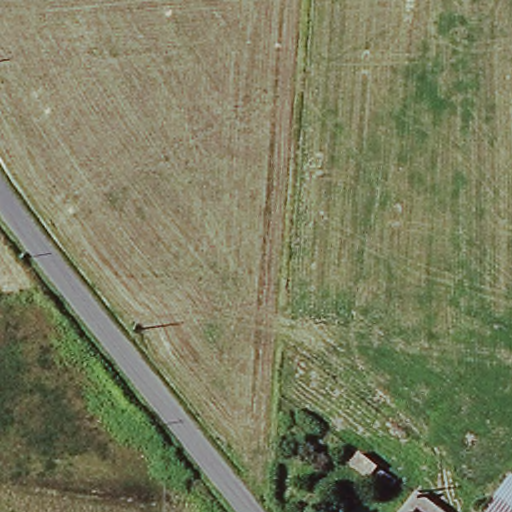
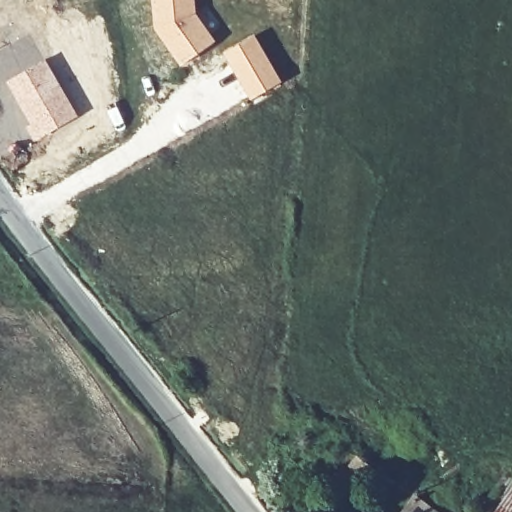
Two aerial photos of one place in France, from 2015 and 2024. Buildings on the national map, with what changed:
new [(197,12),(216,41),(180,66),(153,27),(150,0),(196,0),(197,12)]
new [(255,32),(282,81),(251,99),(222,53),(255,32)]
new [(46,57),(79,115),(37,139),(7,80),(46,57)]
unchanged [(348,467),(357,454),(377,471),(368,483),(348,467)]
unchanged [(512,476),(512,512),(493,499),(511,475),(512,476)]
unchanged [(512,512),(484,512),(493,499),(512,512)]
unchanged [(434,512),(411,512),(418,501),(434,512)]

